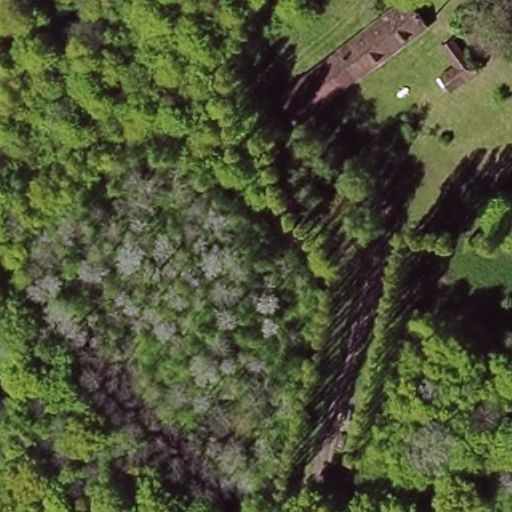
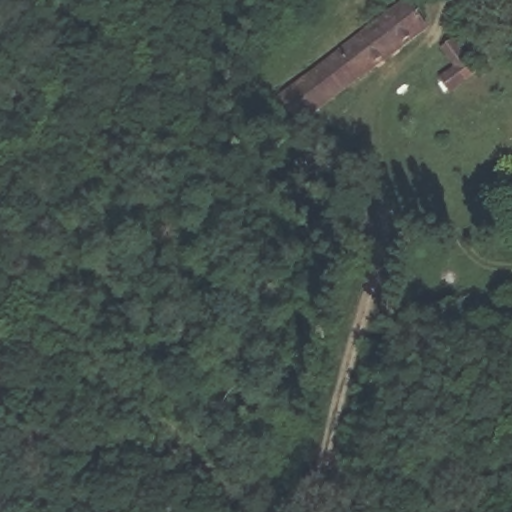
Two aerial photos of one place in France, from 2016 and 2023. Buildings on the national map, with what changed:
unchanged [(379,24),(374,16),(394,0),(415,0),(421,6),(415,11),(428,27),(310,130),(289,102),(379,24)]
unchanged [(482,71),(452,99),(440,85),(461,67),(449,51),(460,41),(482,71)]

